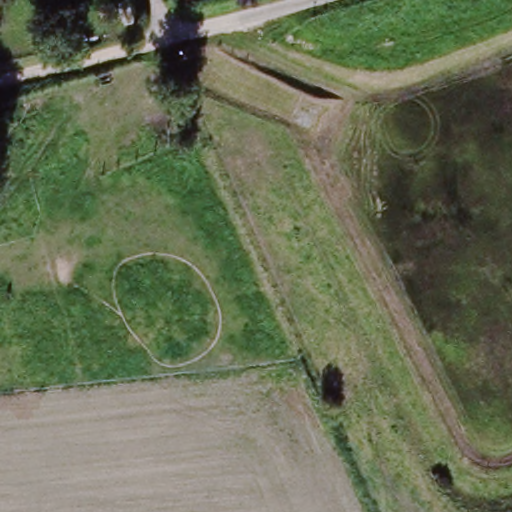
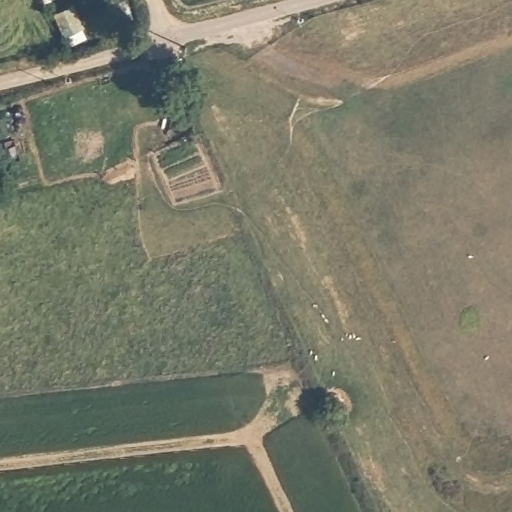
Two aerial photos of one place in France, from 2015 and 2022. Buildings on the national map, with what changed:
unchanged [(87,32),(62,40),(52,13),(77,4),(87,32)]

